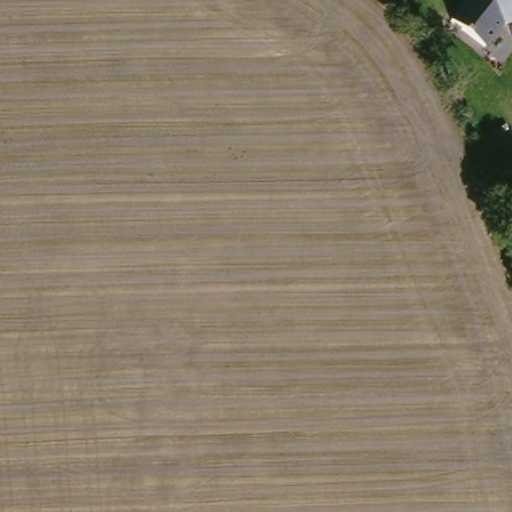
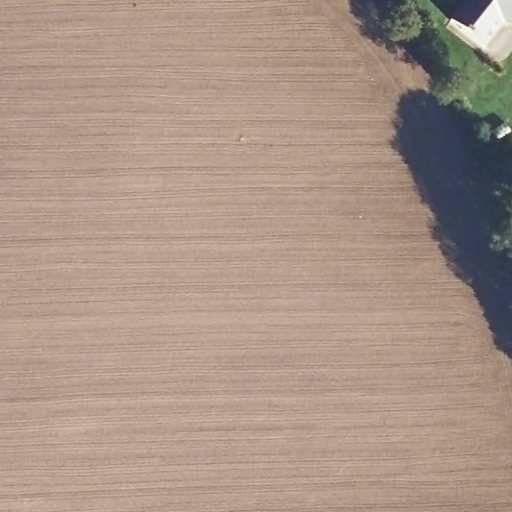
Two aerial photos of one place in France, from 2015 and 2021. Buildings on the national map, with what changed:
unchanged [(476,46),(444,17),(460,0),(512,0),(512,22),(496,24),(476,46)]

